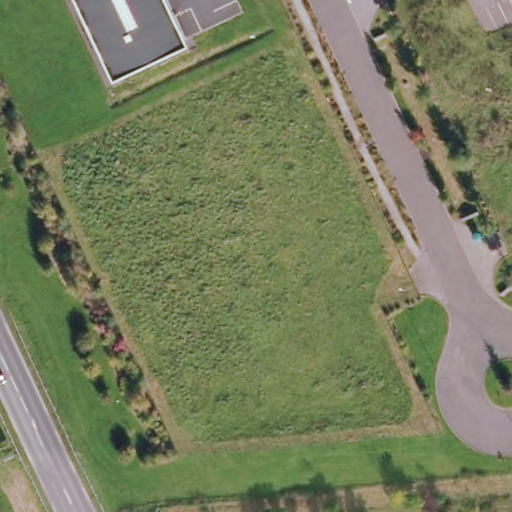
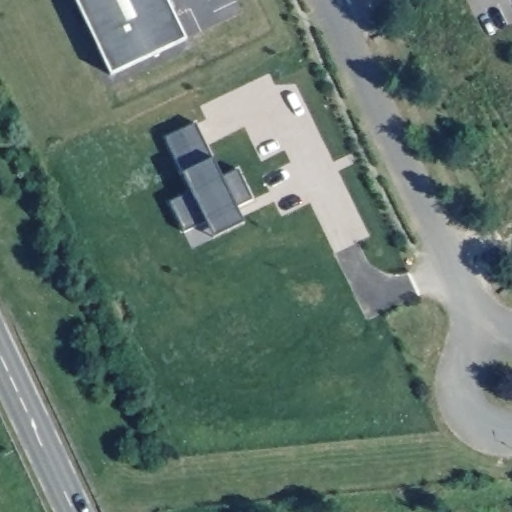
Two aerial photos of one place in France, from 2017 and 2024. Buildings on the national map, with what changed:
unchanged [(74,0),(167,0),(186,40),(111,76),(74,0)]
new [(214,238),(205,222),(185,232),(171,201),(192,191),(182,172),(166,137),(196,124),(212,158),(222,178),(239,170),(252,200),(235,208),(242,223),(214,238)]

